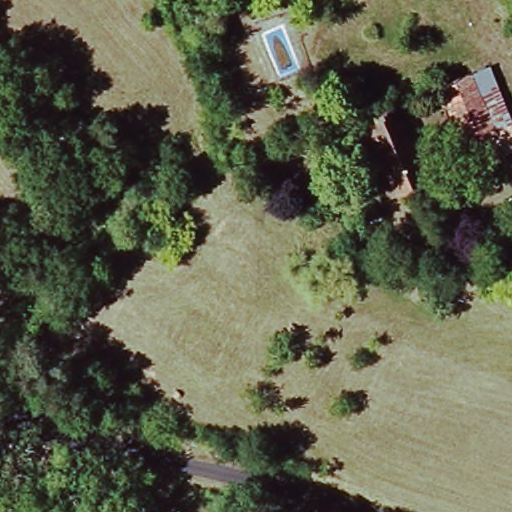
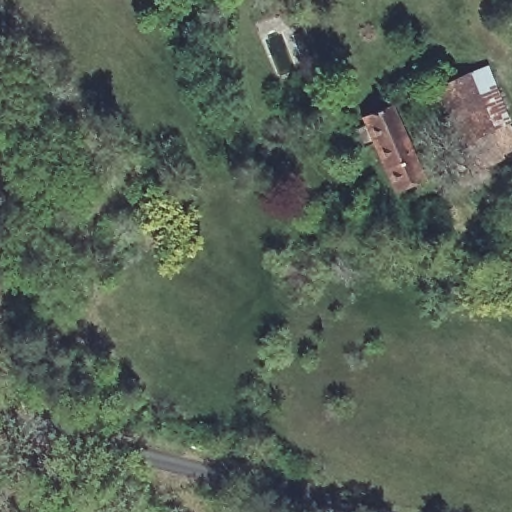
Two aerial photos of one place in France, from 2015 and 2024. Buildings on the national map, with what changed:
unchanged [(509,150),(511,155),(466,175),(456,153),(472,145),(449,95),(435,102),(430,91),(471,73),(472,76),(485,70),(511,126),(512,125),(512,149),(509,150)]
unchanged [(423,185),(395,196),(373,148),(362,153),(356,138),(364,134),(360,123),(392,109),(423,185)]

